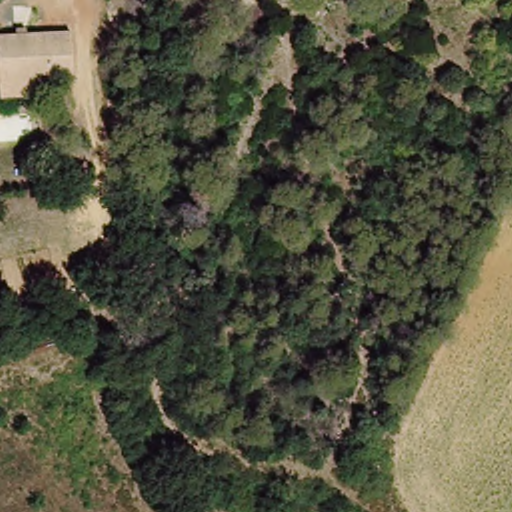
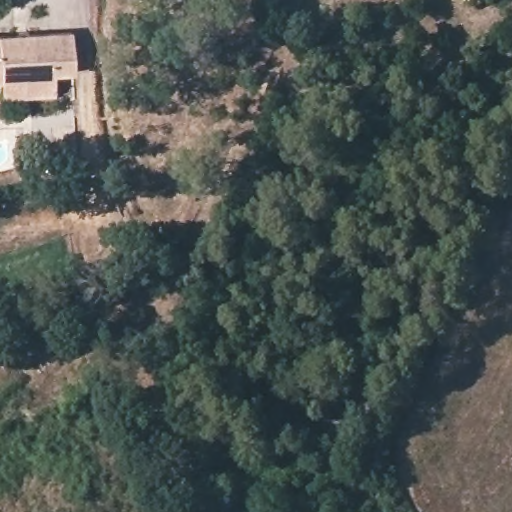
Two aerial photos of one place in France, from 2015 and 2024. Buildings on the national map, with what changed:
unchanged [(68,34),(71,80),(53,83),(55,96),(0,95),(0,36),(68,34)]

